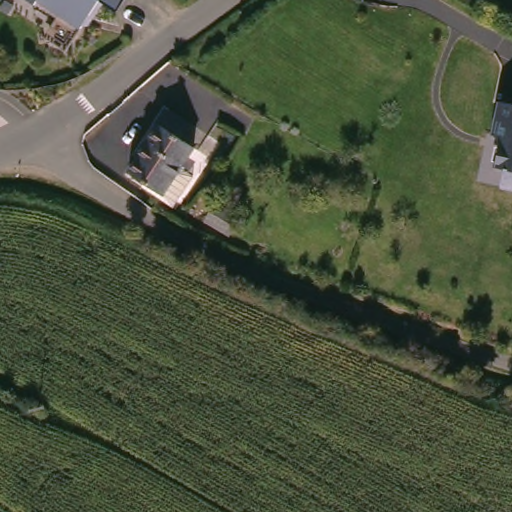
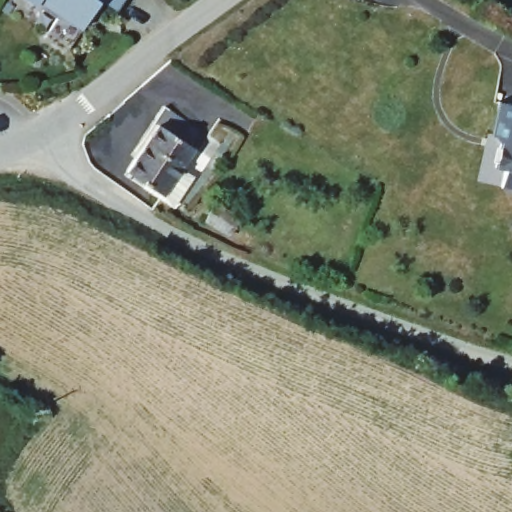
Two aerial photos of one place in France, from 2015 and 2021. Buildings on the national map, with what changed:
unchanged [(109,13),(92,4),(75,32),(62,52),(42,41),(57,16),(28,0),(118,0),(109,13)]
unchanged [(512,104),(512,186),(493,182),(495,162),(486,160),(495,101),(512,104)]
unchanged [(152,132),(148,129),(158,113),(183,129),(174,146),(187,154),(158,201),(122,179),(152,132)]
unchanged [(204,222),(213,205),(214,203),(239,218),(229,236),(204,222)]

